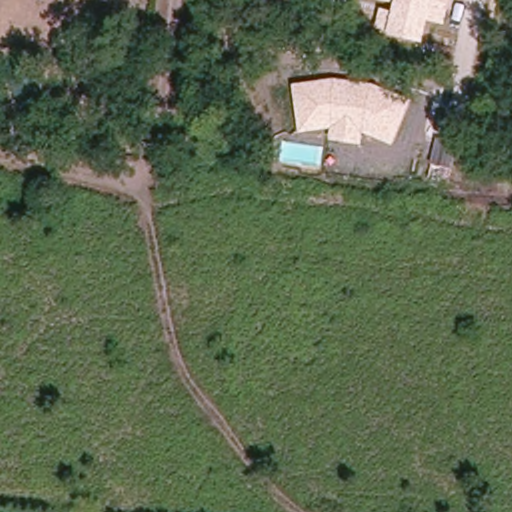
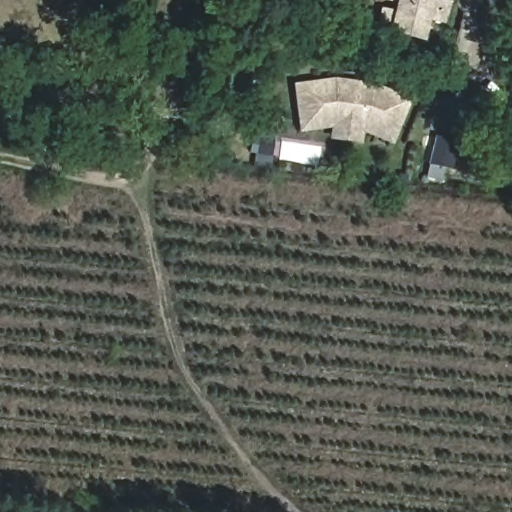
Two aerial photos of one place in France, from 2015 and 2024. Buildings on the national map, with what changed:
unchanged [(427,21),(421,42),(386,34),(387,31),(377,29),(382,8),(392,11),(395,2),(384,0),(450,0),(443,24),(427,21)]
unchanged [(393,145),(363,133),(361,144),(331,139),(332,127),(300,132),(292,84),(333,77),(377,84),(412,100),(393,145)]

